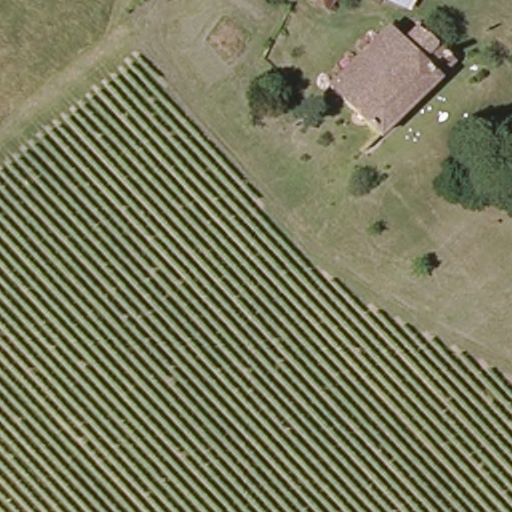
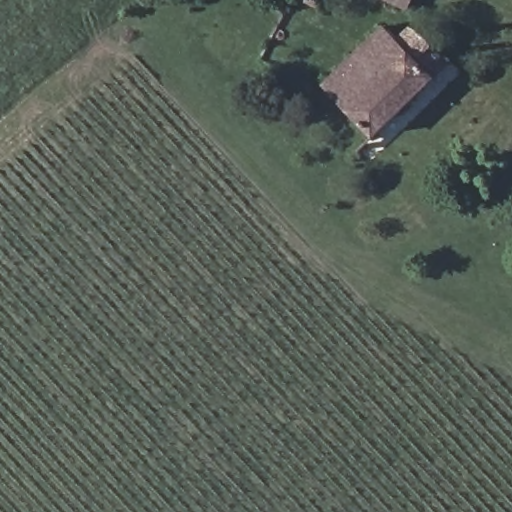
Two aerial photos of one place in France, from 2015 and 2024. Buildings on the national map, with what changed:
unchanged [(386,0),(420,0),(414,13),(386,0)]
unchanged [(371,141),(319,89),(378,30),(391,43),(402,34),(410,42),(439,73),(371,141)]

